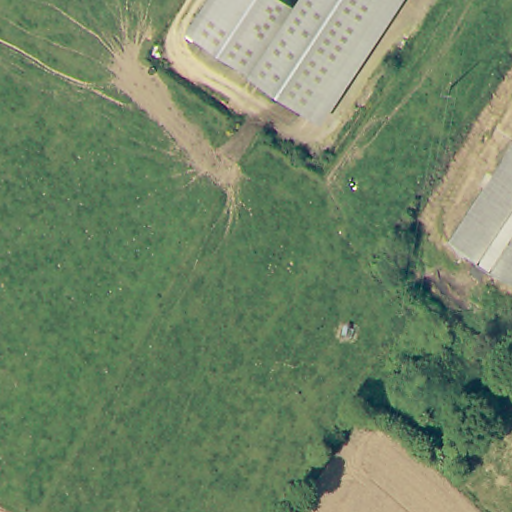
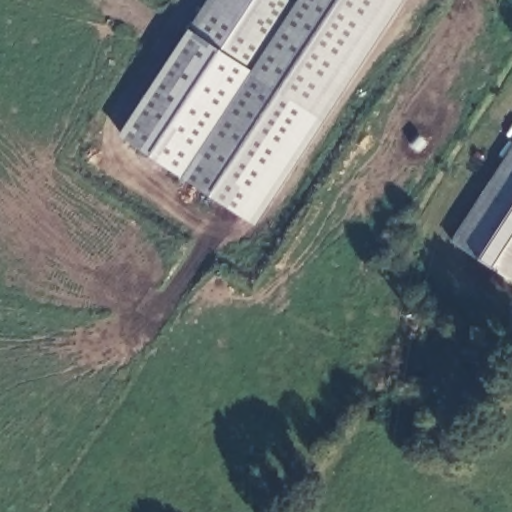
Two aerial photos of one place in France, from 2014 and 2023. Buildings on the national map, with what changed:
new [(248,71),(304,108),(377,0),(402,0),(255,225),(119,133),(186,30),(248,71)]
unchanged [(186,30),(206,0),(288,0),(293,4),(248,71),(186,30)]
unchanged [(296,0),(377,0),(304,108),(296,103),(248,71),(293,4),(296,0)]
unchanged [(447,243),(512,146),(512,286),(447,243)]

